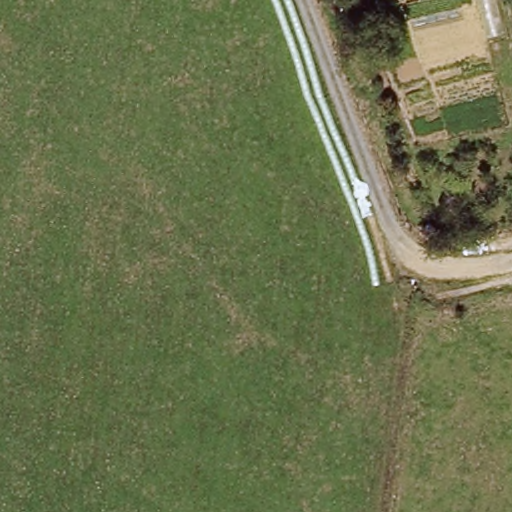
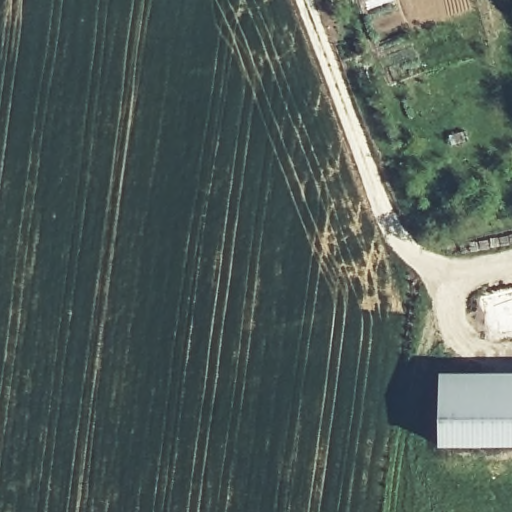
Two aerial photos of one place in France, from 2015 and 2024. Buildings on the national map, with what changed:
new [(443,373),(512,373),(512,448),(444,448),(443,373)]

